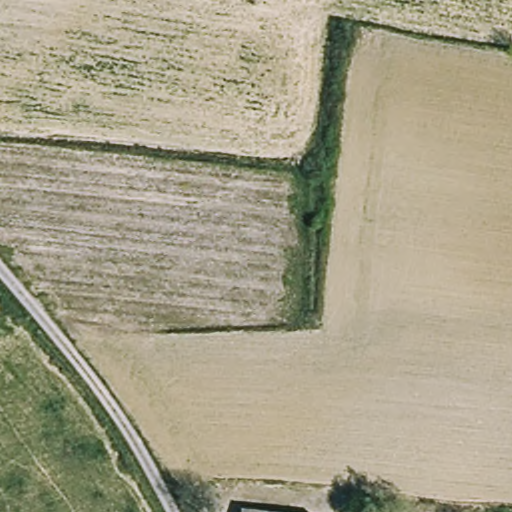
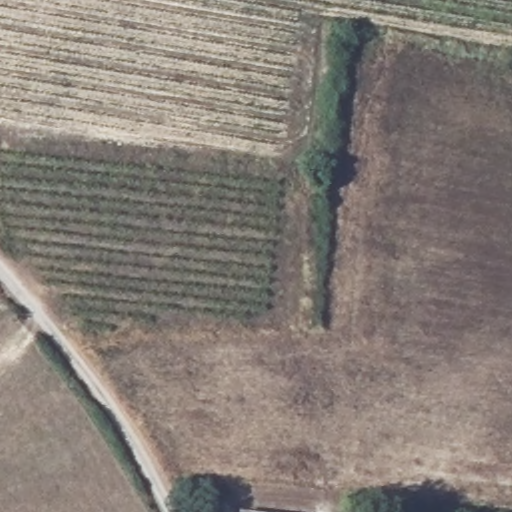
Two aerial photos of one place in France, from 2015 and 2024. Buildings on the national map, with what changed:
unchanged [(274,512),(239,512),(240,509),(274,512)]

